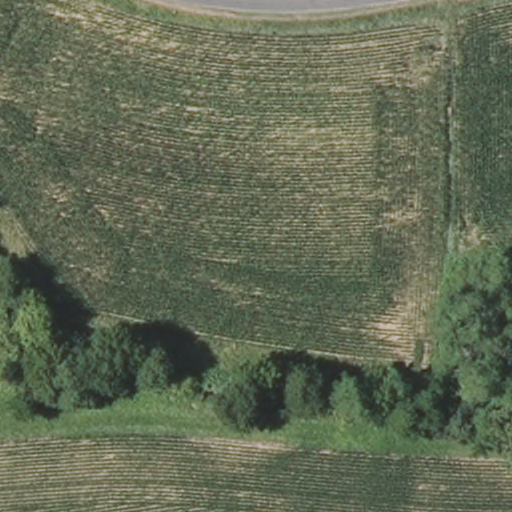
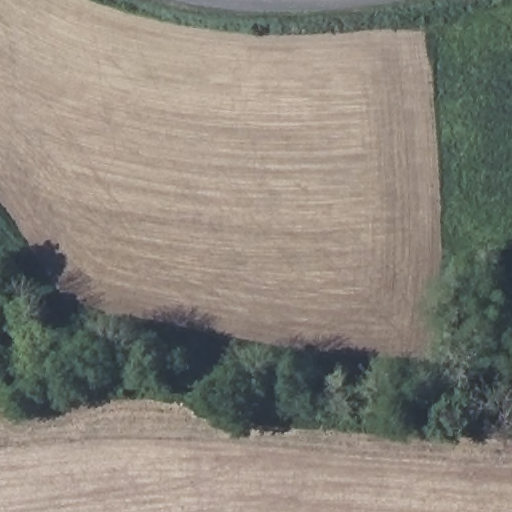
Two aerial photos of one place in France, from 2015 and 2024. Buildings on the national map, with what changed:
[]

